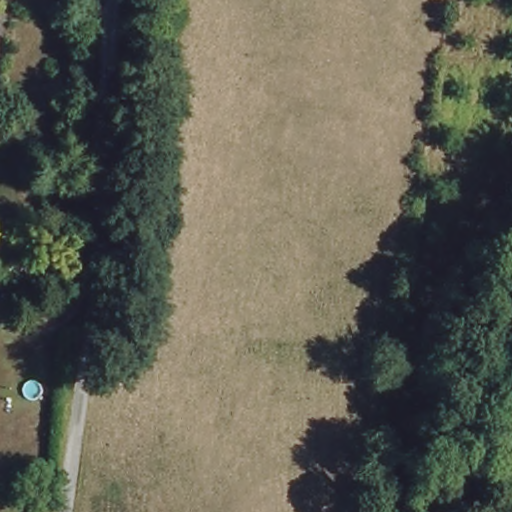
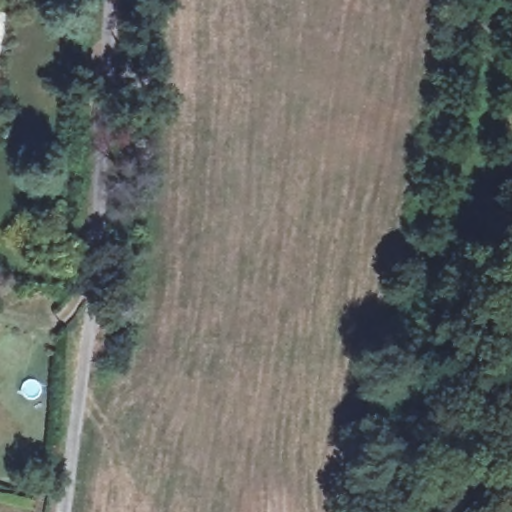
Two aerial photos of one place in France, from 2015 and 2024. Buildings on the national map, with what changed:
[]

